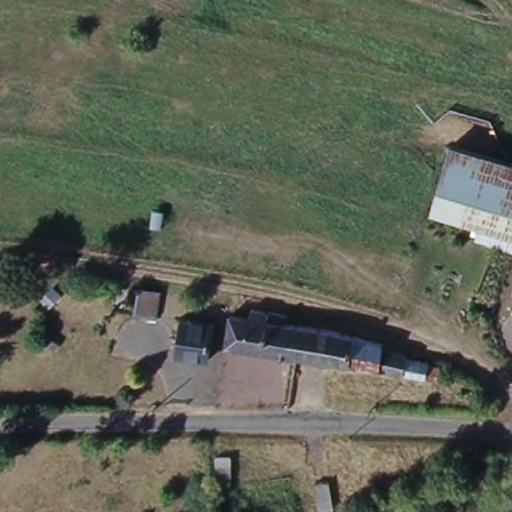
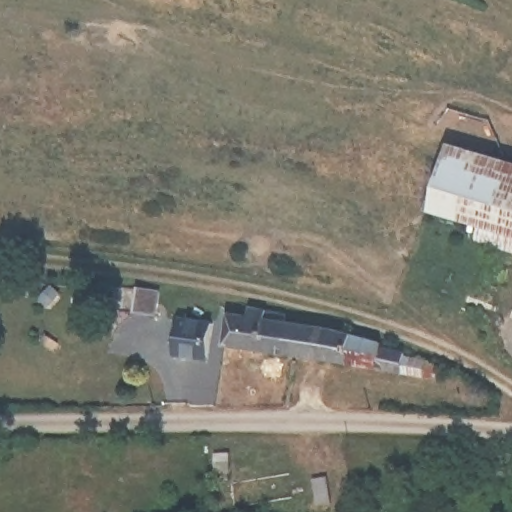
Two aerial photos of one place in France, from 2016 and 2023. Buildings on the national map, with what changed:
unchanged [(477,231),(427,216),(446,156),(512,172),(512,259),(472,247),(477,231)]
unchanged [(156,315),(135,312),(139,289),(159,292),(156,315)]
unchanged [(226,354),(232,323),(252,326),(255,312),(295,323),(293,333),(291,348),(300,351),(297,365),(226,354)]
unchanged [(210,324),(203,361),(172,356),(177,319),(210,324)]
unchanged [(426,382),(406,380),(351,373),(297,365),(300,351),(291,348),(293,333),(361,343),(387,350),(386,358),(407,361),(427,363),(426,382)]
unchanged [(232,452),(235,474),(232,475),(233,480),(229,482),(227,476),(222,476),(218,454),(232,452)]
unchanged [(333,478),(336,504),(321,505),(319,480),(333,478)]

